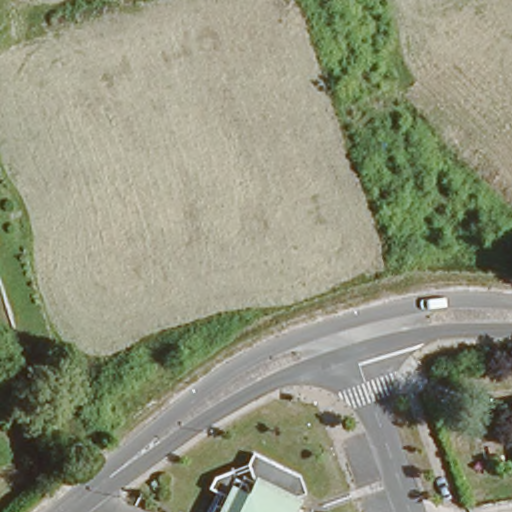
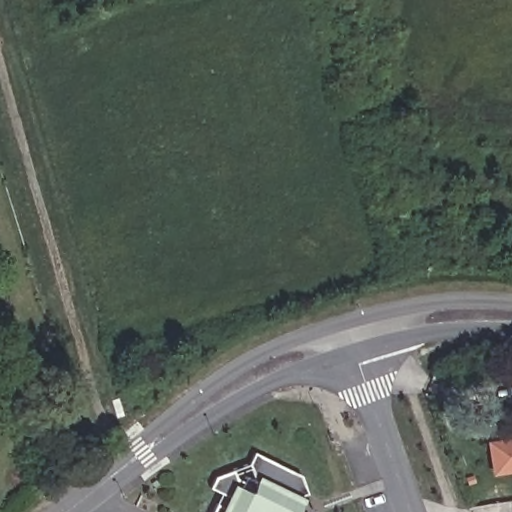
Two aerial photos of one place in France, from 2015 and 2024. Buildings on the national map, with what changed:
new [(492,471),(486,440),(512,435),(512,468),(492,471)]
unchanged [(206,481),(212,470),(233,461),(240,472),(249,467),(246,456),(254,449),(301,470),(319,512),(206,512),(219,486),(206,481)]

